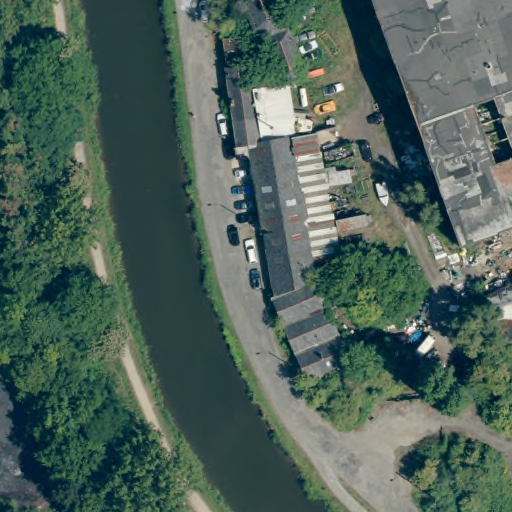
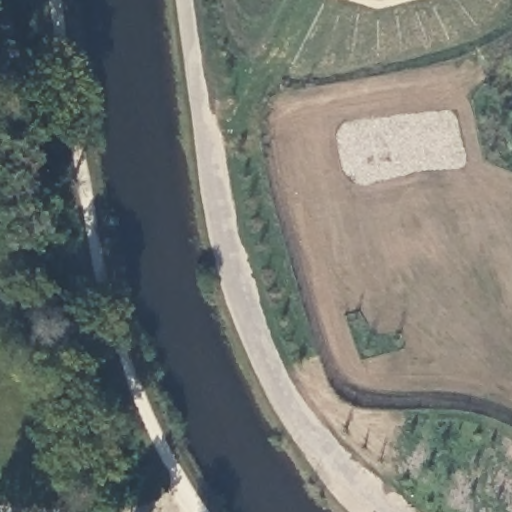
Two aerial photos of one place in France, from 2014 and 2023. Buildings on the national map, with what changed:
demolished [(307,74),(285,81),(270,36),(257,31),(256,29),(246,0),(248,0),(282,0),(288,18),(307,74)]
demolished [(460,244),(374,0),(512,0),(512,225),(460,244)]
demolished [(270,294),(272,292),(246,138),(234,140),(220,32),(235,29),(248,61),(257,137),(290,133),(312,274),(348,362),(305,379),(270,294)]
demolished [(495,332),(486,295),(512,282),(512,379),(495,332)]

